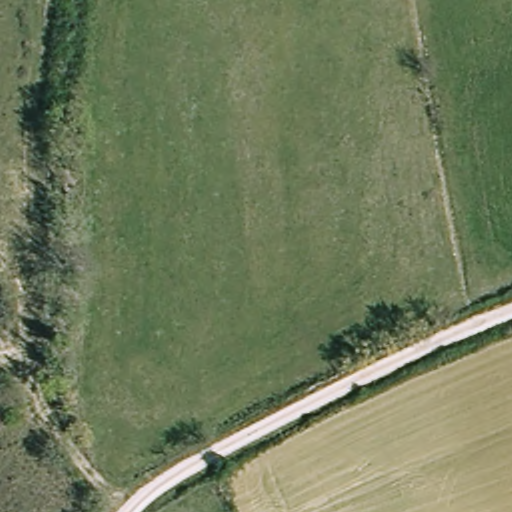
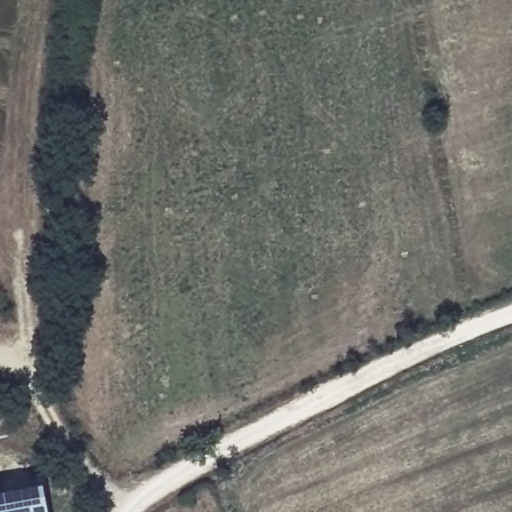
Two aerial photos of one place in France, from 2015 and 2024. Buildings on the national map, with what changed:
new [(43,481),(49,512),(0,512),(0,489),(43,481)]

